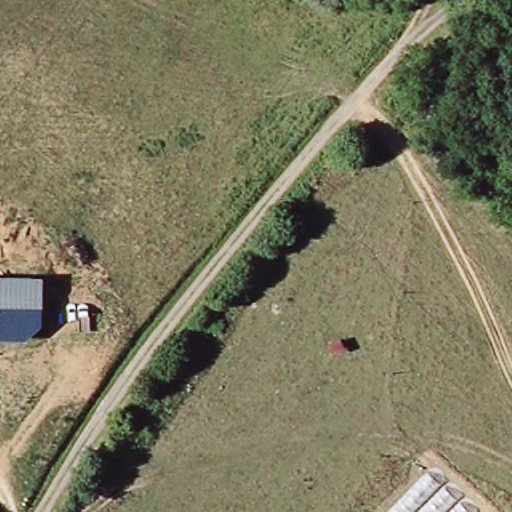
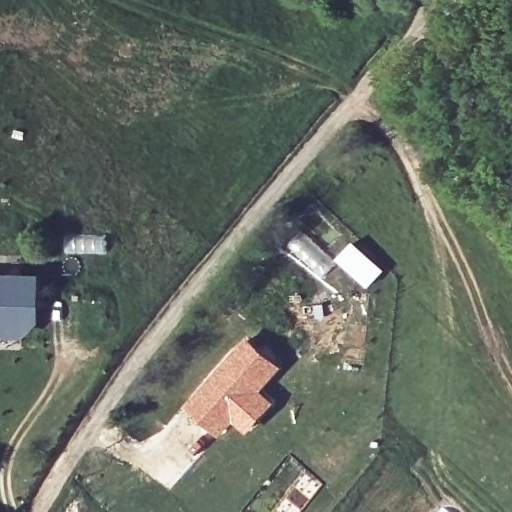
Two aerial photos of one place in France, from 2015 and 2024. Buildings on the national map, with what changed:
new [(301,229),(336,264),(320,280),(283,248),(301,229)]
unchanged [(42,324),(24,338),(0,337),(0,272),(43,273),(42,324)]
new [(246,334),(283,366),(263,390),(277,402),(248,434),(234,422),(222,435),(187,402),(246,334)]
demolished [(120,512),(114,512),(117,509),(120,512)]

